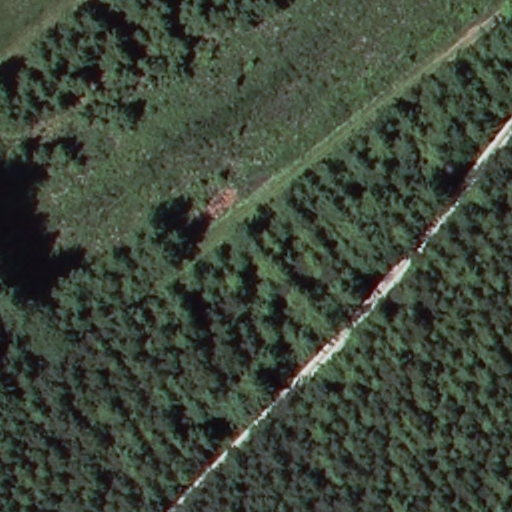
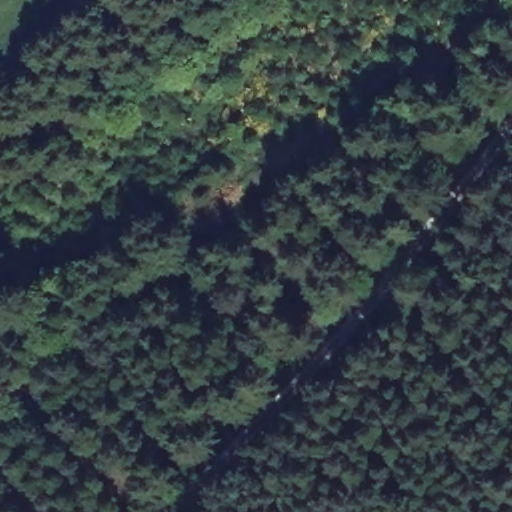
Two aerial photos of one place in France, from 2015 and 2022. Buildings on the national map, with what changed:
[]

